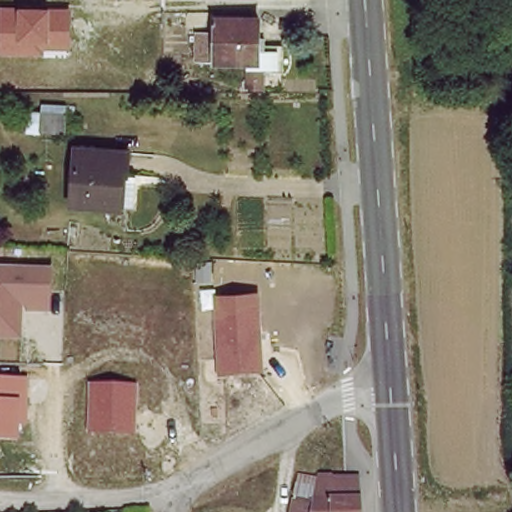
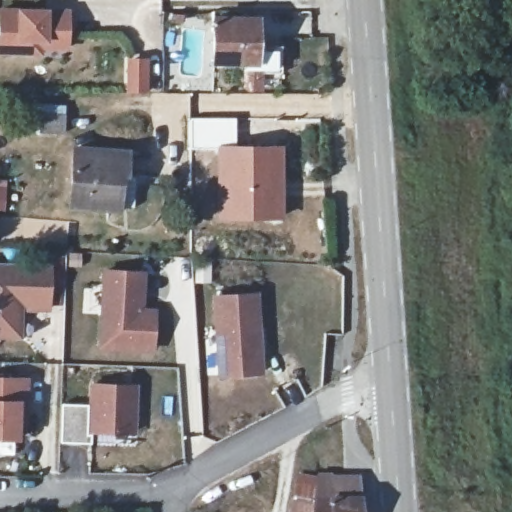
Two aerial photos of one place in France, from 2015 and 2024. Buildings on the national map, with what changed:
unchanged [(42,49),(42,57),(0,56),(0,8),(71,9),(69,50),(42,49)]
unchanged [(264,13),(262,54),(251,54),(219,54),(220,13),(260,13),(264,13)]
unchanged [(72,130),(50,129),(51,111),(74,113),(72,130)]
new [(236,116),(237,144),(215,145),(215,149),(190,149),(189,116),(236,116)]
new [(215,149),(215,145),(237,144),(284,144),(283,220),(212,223),(215,149)]
unchanged [(80,145),(136,148),(134,170),(124,170),(122,205),(76,202),(80,145)]
unchanged [(53,311),(24,311),(24,338),(0,338),(0,262),(54,264),(53,311)]
new [(145,270),(145,308),(157,309),(157,353),(99,351),(103,269),(145,270)]
unchanged [(219,378),(214,295),(258,293),(263,374),(219,378)]
unchanged [(30,428),(22,427),(23,439),(0,440),(0,375),(31,377),(30,428)]
unchanged [(136,434),(88,434),(90,383),(138,385),(136,434)]
unchanged [(288,497),(296,475),(310,477),(360,474),(362,512),(288,512),(288,497)]

